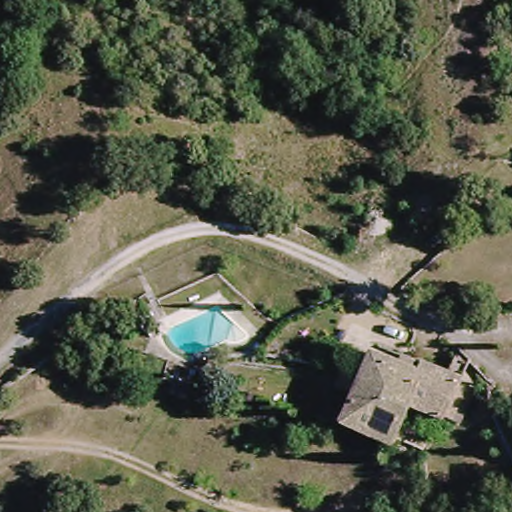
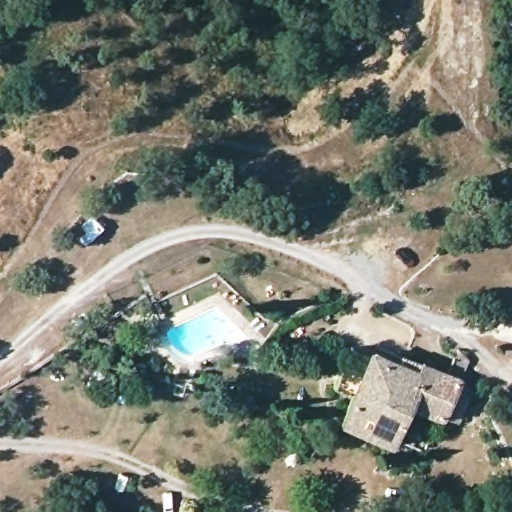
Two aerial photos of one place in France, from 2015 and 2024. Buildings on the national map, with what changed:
unchanged [(393,442),(343,424),(356,398),(376,354),(379,350),(416,362),(431,367),(413,407),(393,442)]
unchanged [(413,407),(431,367),(449,372),(467,379),(445,420),(413,407)]

